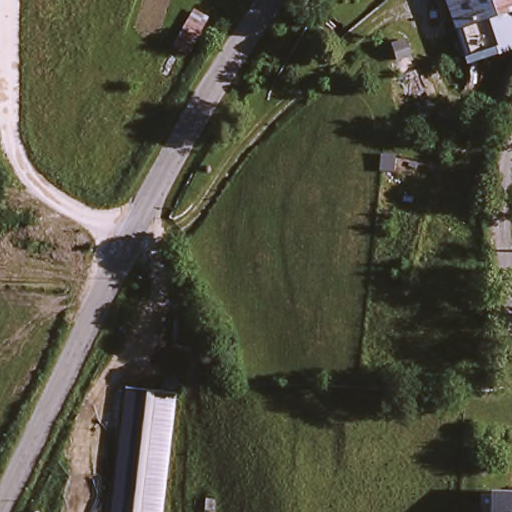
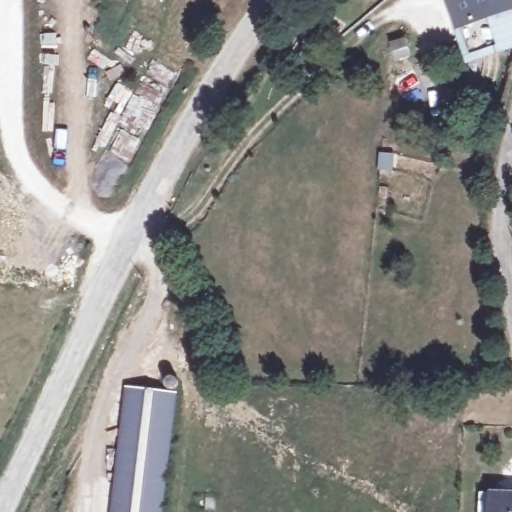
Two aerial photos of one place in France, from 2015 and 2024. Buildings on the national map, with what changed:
unchanged [(452,0),(512,0),(512,47),(473,59),(452,0)]
unchanged [(407,58),(403,45),(415,41),(420,55),(407,58)]
unchanged [(402,170),(391,169),(392,154),(403,154),(402,170)]
unchanged [(181,393),(169,512),(120,512),(133,387),(181,393)]
unchanged [(512,512),(490,512),(486,496),(512,490),(512,512)]

